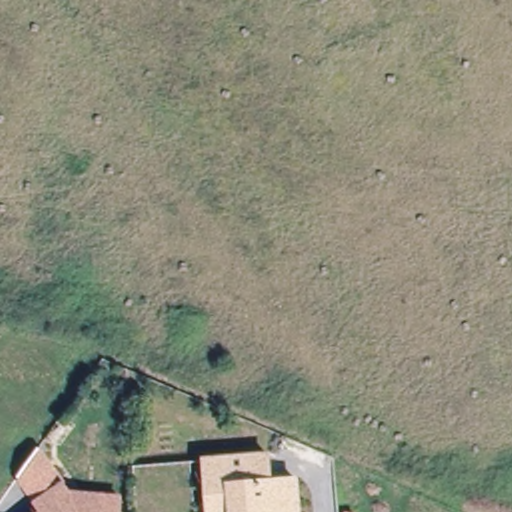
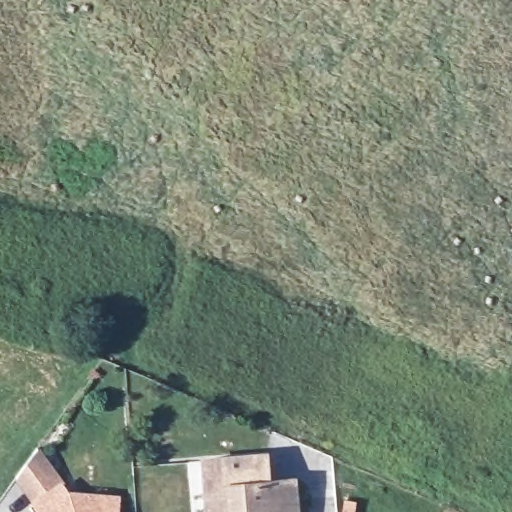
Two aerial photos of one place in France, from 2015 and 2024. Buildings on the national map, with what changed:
unchanged [(15,472),(34,445),(68,490),(116,493),(115,512),(38,512),(42,509),(15,472)]
unchanged [(205,460),(268,454),(270,480),(296,478),(299,511),(287,512),(209,512),(208,501),(205,460)]

